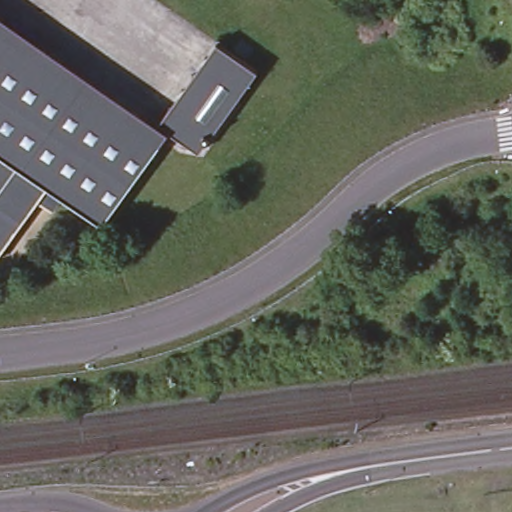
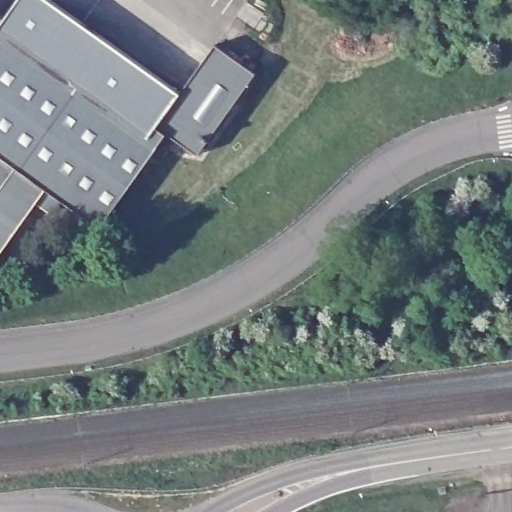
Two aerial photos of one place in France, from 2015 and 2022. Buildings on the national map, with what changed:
new [(7,17),(19,0),(52,0),(179,91),(158,120),(156,125),(165,133),(160,139),(0,25),(0,12),(7,17)]
unchanged [(160,139),(99,221),(17,162),(0,150),(0,25),(160,139)]
unchanged [(217,39),(258,69),(198,149),(158,120),(217,39)]
unchanged [(17,162),(0,187),(0,150),(17,162)]
new [(17,162),(48,184),(0,252),(0,187),(17,162)]

